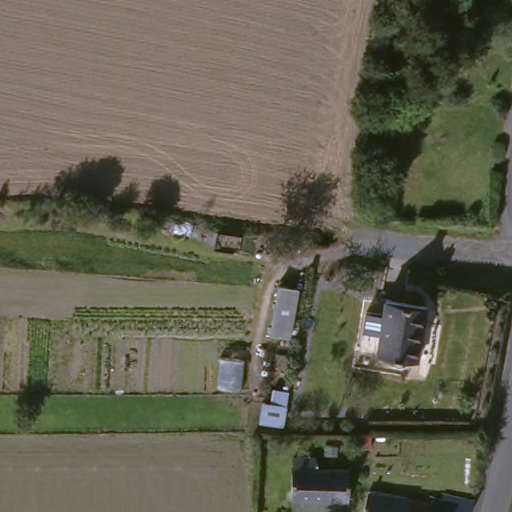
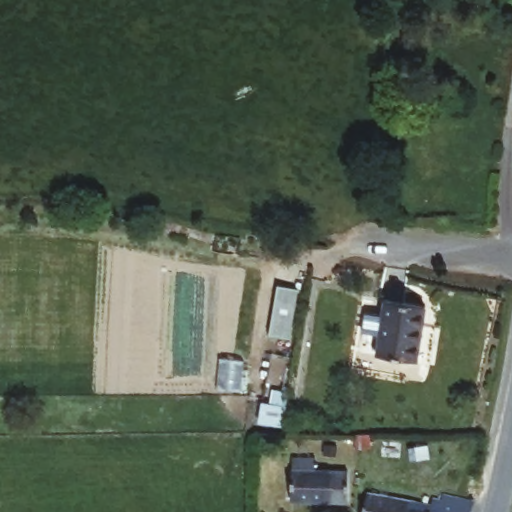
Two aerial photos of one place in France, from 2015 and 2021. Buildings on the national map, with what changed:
unchanged [(275,291),(295,294),(288,343),(268,339),(275,291)]
unchanged [(383,330),(373,328),(376,316),(385,317),(386,311),(425,317),(418,359),(379,354),(383,330)]
unchanged [(266,420),(269,402),(289,406),(286,424),(266,420)]
unchanged [(343,472),(341,501),(293,498),(290,471),(343,472)]
unchanged [(465,497),(461,512),(455,512),(429,507),(433,493),(465,497)]
unchanged [(398,504),(396,511),(400,512),(357,512),(359,501),(398,504)]

